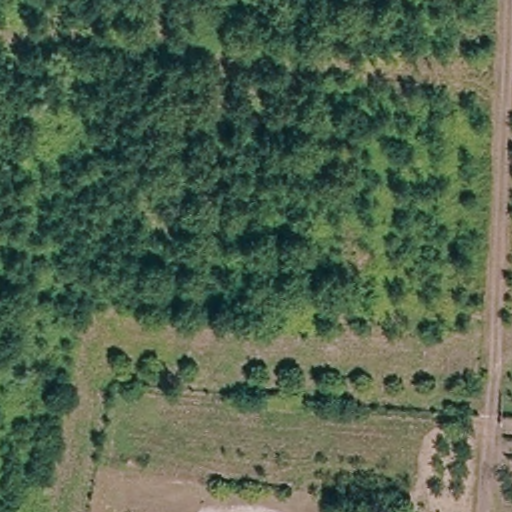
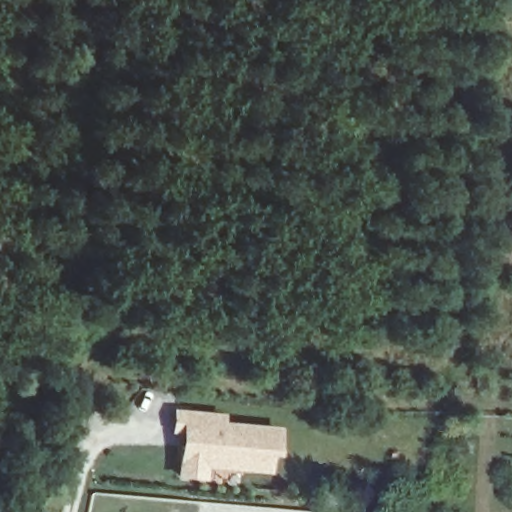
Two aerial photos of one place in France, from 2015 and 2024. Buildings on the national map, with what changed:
new [(225,415),(225,424),(281,428),(280,458),(272,458),(270,475),(206,470),(205,482),(175,479),(180,435),(170,435),(172,410),(225,415)]

